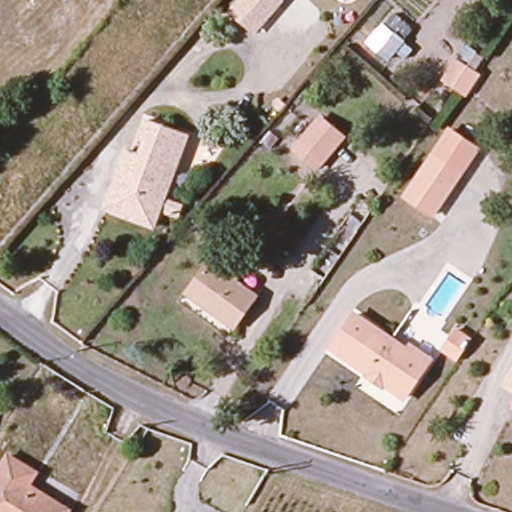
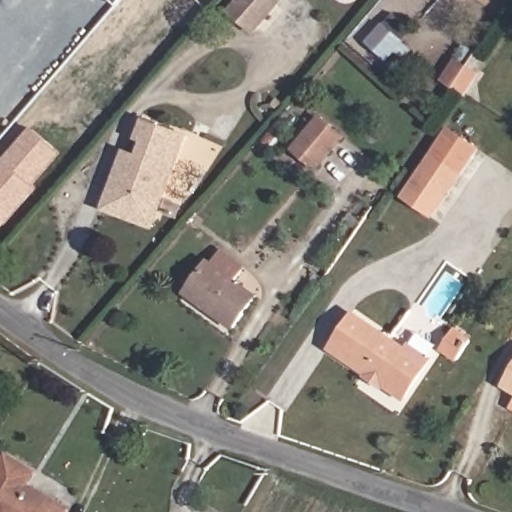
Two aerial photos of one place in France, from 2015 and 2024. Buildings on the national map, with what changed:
unchanged [(286,4),(257,36),(228,14),(240,0),(282,0),(286,4)]
demolished [(0,41),(0,22),(7,37),(0,41)]
unchanged [(373,22),(403,45),(388,62),(359,40),(373,22)]
unchanged [(481,74),(466,97),(440,81),(454,57),(463,43),(476,52),(484,57),(476,71),(481,74)]
unchanged [(320,121),(343,140),(317,169),(294,149),(320,121)]
new [(61,153),(34,185),(37,187),(2,228),(0,226),(0,162),(31,126),(61,153)]
unchanged [(449,126),(481,147),(434,218),(428,214),(456,175),(428,155),(449,126)]
unchanged [(133,209),(135,202),(109,189),(123,159),(136,164),(143,147),(138,145),(147,128),(188,147),(153,220),(133,209)]
unchanged [(428,155),(456,175),(428,214),(401,196),(428,155)]
unchanged [(147,235),(100,213),(109,189),(135,202),(133,209),(153,220),(147,235)]
unchanged [(211,266),(216,268),(228,256),(247,272),(237,284),(256,302),(231,332),(186,297),(211,266)]
unchanged [(349,317),(398,349),(400,345),(423,361),(398,398),(326,351),(349,317)]
unchanged [(505,390),(512,379),(512,394),(505,390)]
unchanged [(510,411),(512,407),(512,412),(510,411)]
unchanged [(36,475),(27,487),(62,512),(0,512),(0,474),(10,458),(36,475)]

